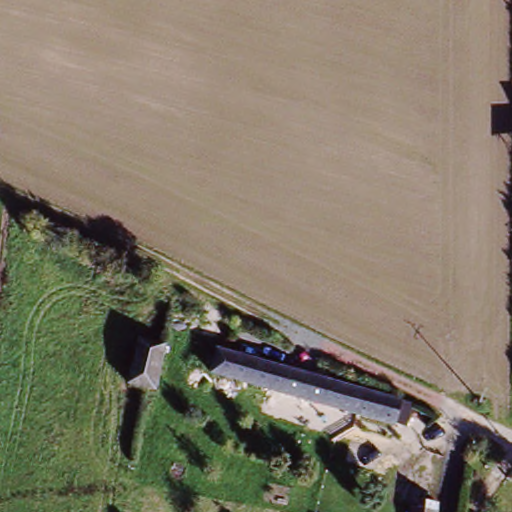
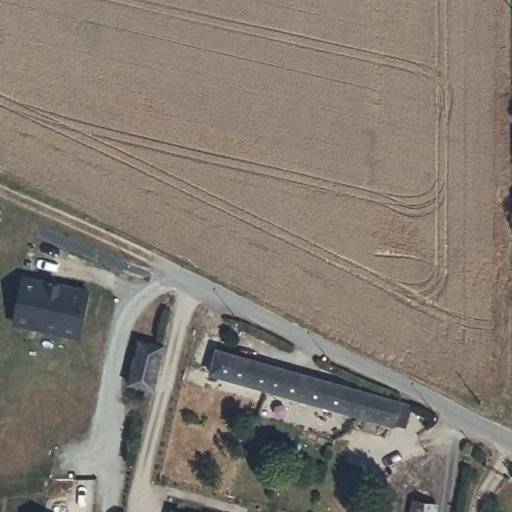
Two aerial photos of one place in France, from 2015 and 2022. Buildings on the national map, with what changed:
new [(22,278),(87,290),(80,332),(14,319),(22,278)]
unchanged [(146,391),(127,387),(138,344),(153,348),(162,351),(153,392),(146,391)]
unchanged [(356,421),(220,372),(214,352),(337,391),(364,400),(365,397),(381,403),(379,412),(377,417),(360,411),(356,421)]
unchanged [(407,498),(437,501),(435,512),(405,512),(407,498)]
new [(183,512),(171,512),(172,510),(183,512)]

